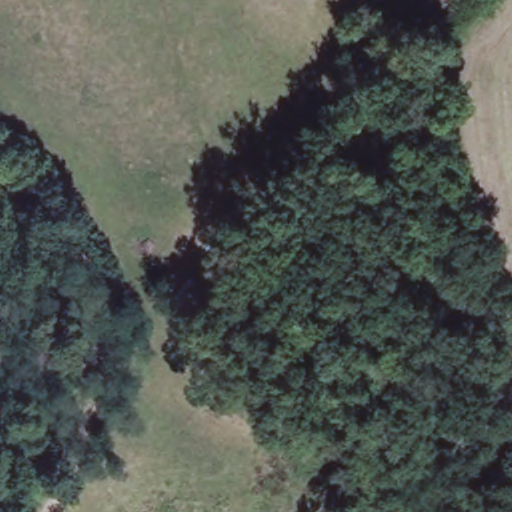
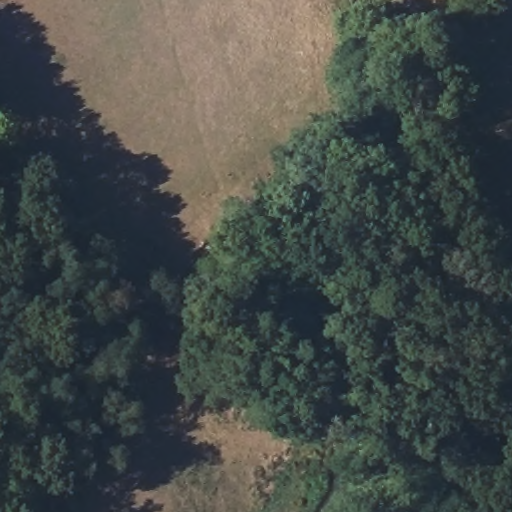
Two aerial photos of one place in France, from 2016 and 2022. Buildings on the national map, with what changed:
unchanged [(9,135),(0,140),(0,117),(9,135)]

